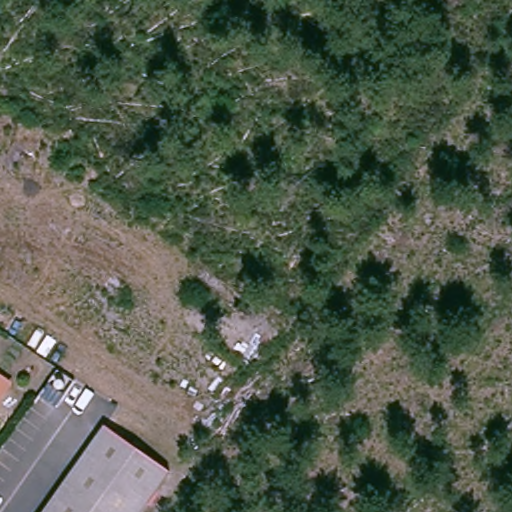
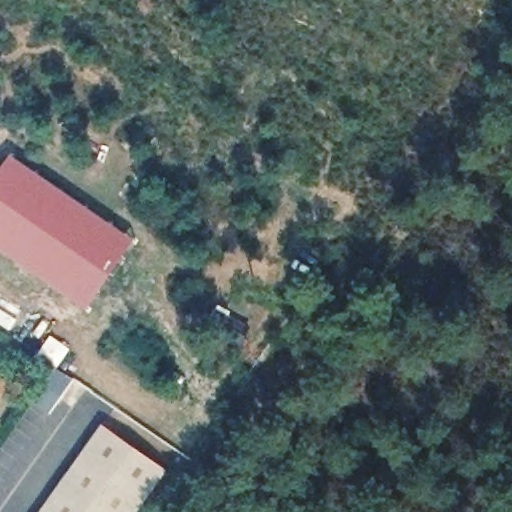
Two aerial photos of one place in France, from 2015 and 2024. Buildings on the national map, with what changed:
new [(10,153),(135,238),(86,309),(0,250),(0,169),(10,153)]
new [(50,334),(70,348),(56,369),(36,356),(50,334)]
new [(54,367),(73,379),(47,416),(30,404),(54,367)]
unchanged [(11,377),(0,394),(0,370),(11,377)]
unchanged [(165,468),(135,512),(38,512),(100,423),(165,468)]

